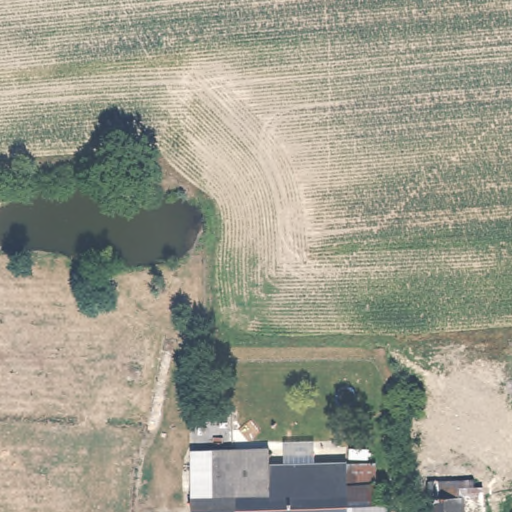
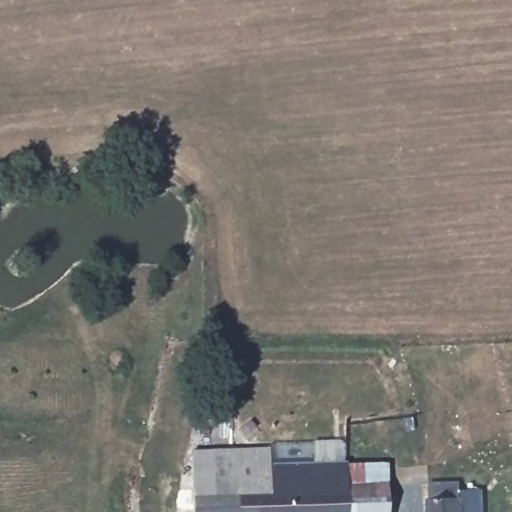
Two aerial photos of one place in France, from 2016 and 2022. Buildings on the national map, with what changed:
unchanged [(279,432),(280,470),(267,470),(266,492),(192,492),(192,436),(279,432)]
unchanged [(341,470),(340,487),(341,512),(192,512),(192,492),(266,492),(267,470),(280,470),(341,470)]
unchanged [(472,480),(473,512),(431,512),(430,480),(472,480)]
unchanged [(383,488),(383,512),(341,512),(340,487),(383,488)]

